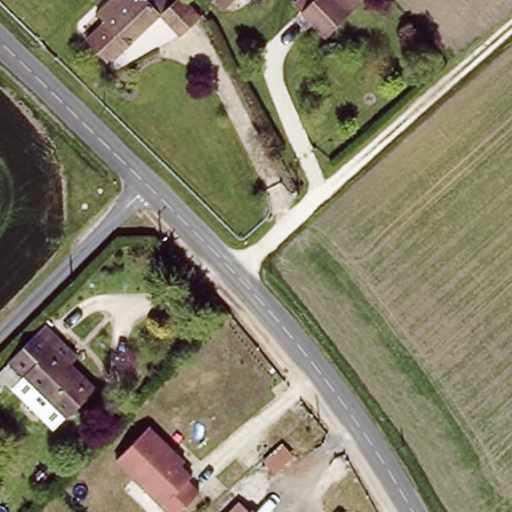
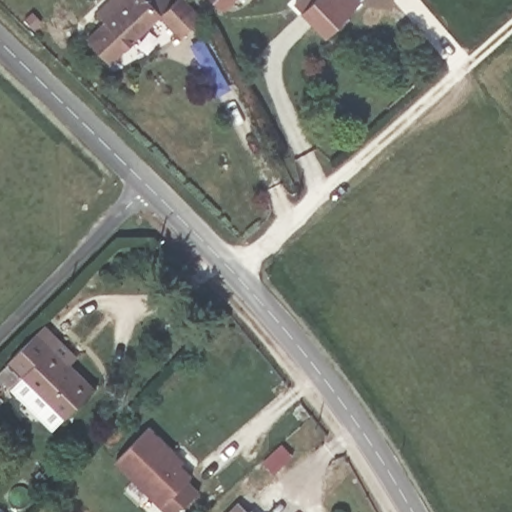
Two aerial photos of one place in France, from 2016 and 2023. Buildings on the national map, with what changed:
unchanged [(165,16),(114,67),(92,45),(111,27),(102,18),(121,0),(150,0),(165,16)]
unchanged [(222,12),(208,0),(232,0),(222,12)]
unchanged [(360,3),(328,37),(297,8),(305,0),(357,0),(360,3)]
unchanged [(186,40),(165,16),(182,3),(203,25),(186,40)]
unchanged [(68,366),(90,386),(63,415),(60,412),(13,369),(11,367),(38,337),(47,329),(59,341),(77,356),(68,366)]
unchanged [(60,412),(48,425),(1,382),(13,369),(60,412)]
unchanged [(182,465),(193,474),(188,480),(200,491),(180,512),(167,512),(115,459),(148,423),(185,460),(182,465)]
unchanged [(252,504),(260,512),(225,512),(237,500),(248,509),(252,504)]

